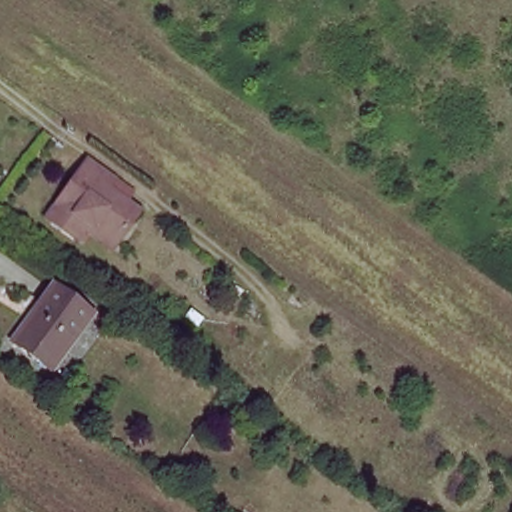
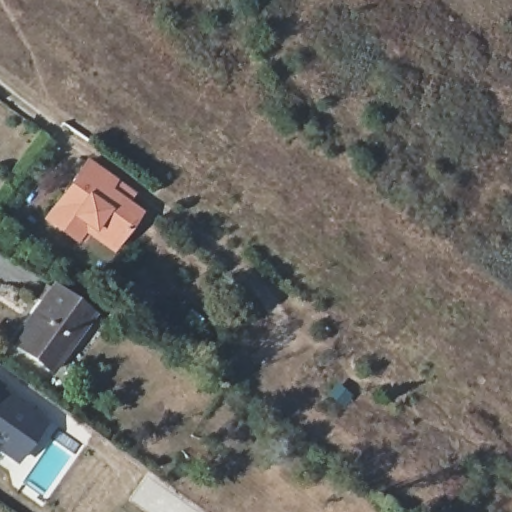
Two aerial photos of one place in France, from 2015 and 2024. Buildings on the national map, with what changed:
unchanged [(113,175),(105,188),(135,209),(108,251),(78,229),(71,238),(43,218),(85,155),(113,175)]
unchanged [(18,342),(56,285),(93,309),(73,336),(82,344),(61,373),(18,342)]
new [(52,423),(15,466),(0,457),(0,392),(3,388),(52,423)]
unchanged [(380,511),(381,512),(379,512),(380,511)]

